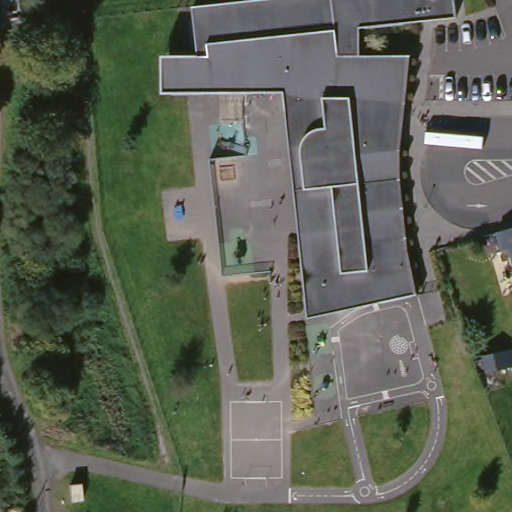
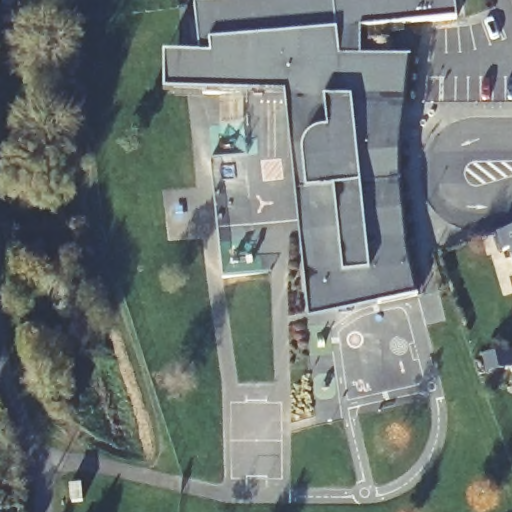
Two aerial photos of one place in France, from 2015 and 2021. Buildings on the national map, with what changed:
unchanged [(204,55),(199,4),(245,0),(460,0),(462,18),(368,28),(366,56),(418,54),(414,104),(407,151),(408,184),(416,251),(424,297),(313,321),(289,91),(169,92),(169,55),(204,55)]
unchanged [(512,229),(512,249),(507,230),(512,229)]
unchanged [(502,336),(512,333),(512,349),(493,353),(489,338),(502,336)]
unchanged [(72,498),(72,481),(83,481),(83,498),(72,498)]

